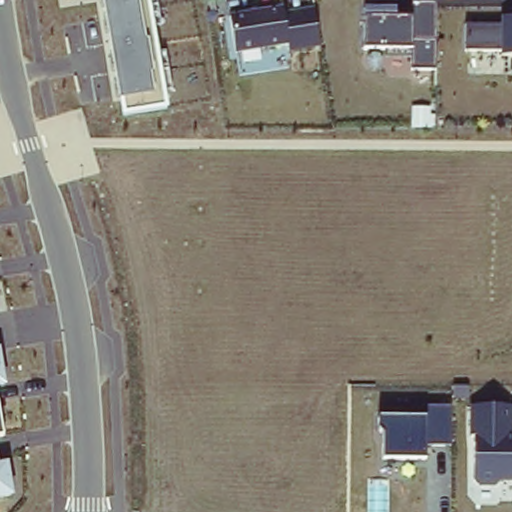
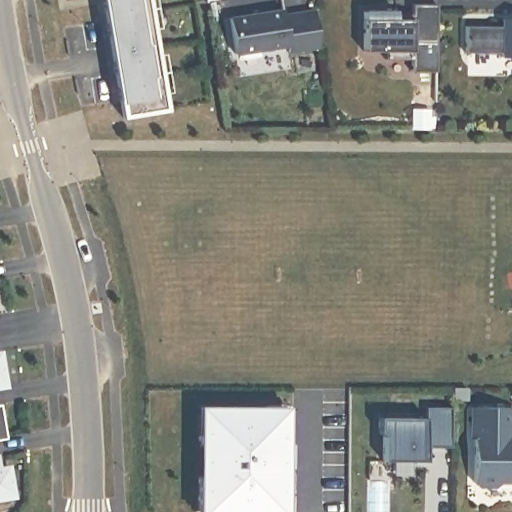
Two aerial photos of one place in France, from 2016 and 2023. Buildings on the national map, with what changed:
unchanged [(123,118),(101,0),(150,0),(169,109),(123,118)]
unchanged [(410,71),(410,46),(364,48),(365,10),(395,9),(394,18),(413,18),(413,5),(435,5),(437,73),(410,71)]
unchanged [(288,52),(287,45),(236,54),(229,17),(283,6),(286,14),(317,9),(323,44),(288,52)]
unchanged [(503,52),(467,52),(466,25),(502,24),(502,18),(512,19),(512,58),(503,58),(503,52)]
unchanged [(6,390),(0,391),(0,358),(6,390)]
unchanged [(427,443),(426,459),(383,459),(382,417),(425,416),(426,405),(451,404),(453,444),(427,443)]
new [(263,412),(284,412),(285,444),(293,444),(294,467),(277,467),(277,476),(286,476),(286,509),(256,509),(256,512),(229,512),(229,511),(197,511),(198,475),(206,475),(206,446),(198,446),(198,428),(206,427),(207,405),(263,407),(263,412)]
unchanged [(498,488),(479,489),(474,480),(472,406),(512,406),(512,482),(499,482),(498,488)]
unchanged [(4,437),(0,438),(0,414),(4,437)]
unchanged [(0,500),(0,463),(0,465),(9,463),(14,497),(0,500)]

